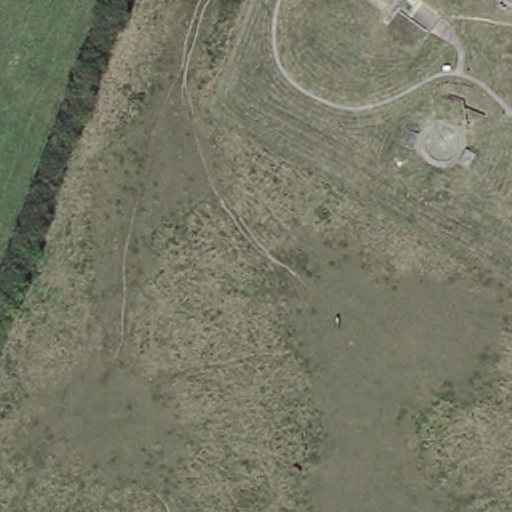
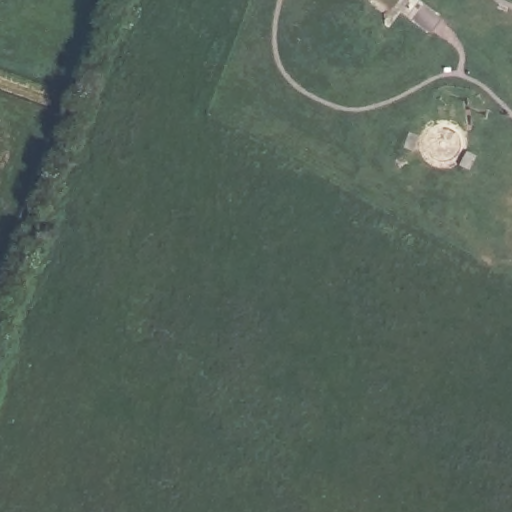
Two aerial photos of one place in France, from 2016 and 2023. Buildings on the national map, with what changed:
unchanged [(354,0),(399,0),(377,27),(348,7),(354,0)]

